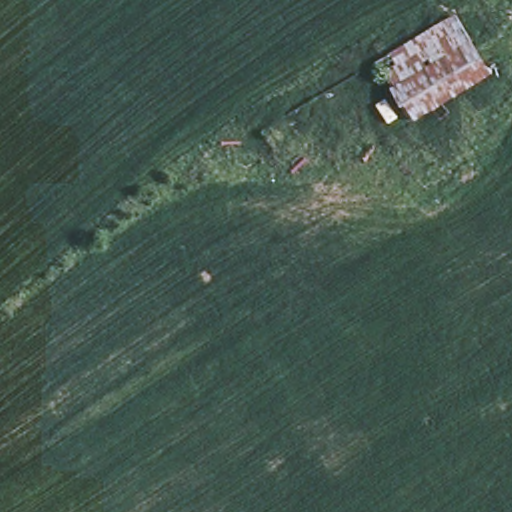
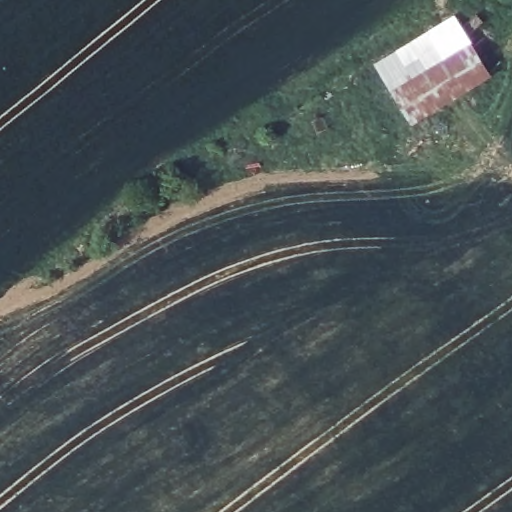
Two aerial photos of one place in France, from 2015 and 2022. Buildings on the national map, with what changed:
unchanged [(451,9),(492,72),(410,120),(365,56),(451,9)]

